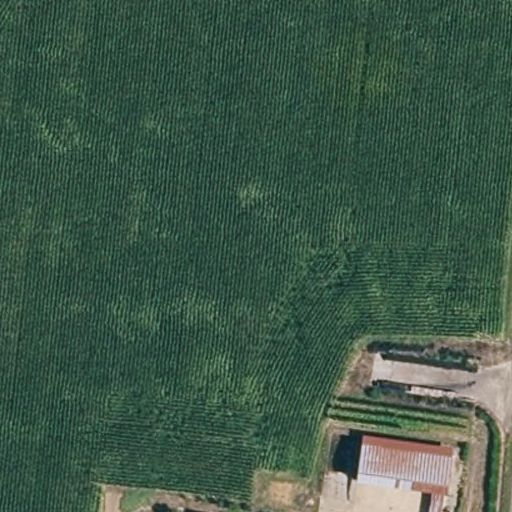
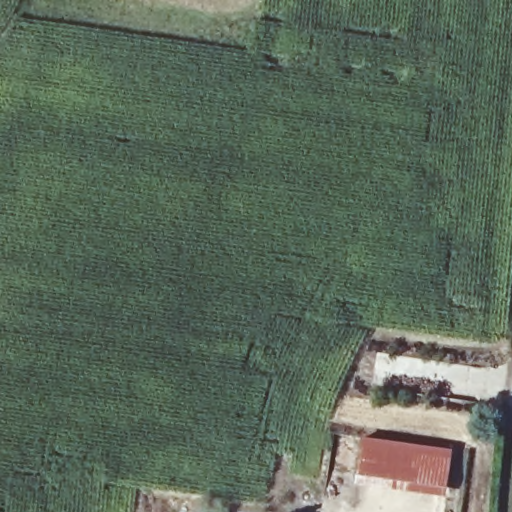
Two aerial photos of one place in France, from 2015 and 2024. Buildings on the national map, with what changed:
unchanged [(450,446),(439,512),(423,512),(428,492),(353,481),(359,432),(450,446)]

